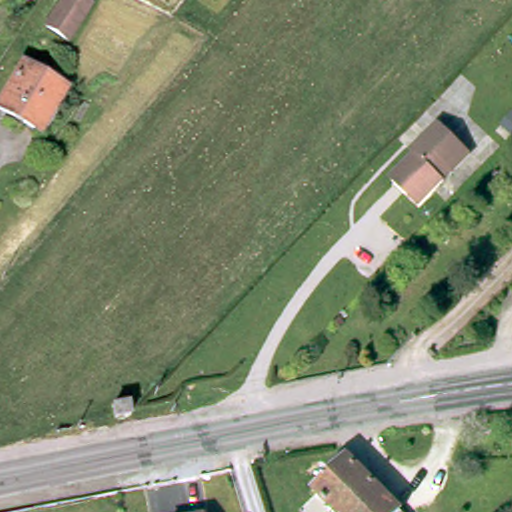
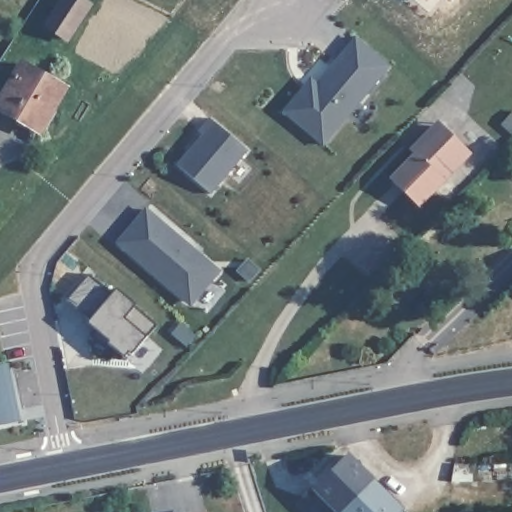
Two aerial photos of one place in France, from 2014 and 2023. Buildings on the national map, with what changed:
unchanged [(70,44),(47,32),(63,0),(76,0),(89,7),(70,44)]
new [(423,0),(429,0),(427,3),(423,0)]
new [(317,83),(354,36),(391,66),(325,144),(282,112),(310,77),(317,83)]
unchanged [(67,92),(40,133),(0,107),(0,104),(26,65),(67,92)]
new [(186,148),(209,118),(249,150),(211,194),(176,167),(189,150),(186,148)]
unchanged [(415,157),(412,154),(439,127),(442,130),(470,157),(420,209),(392,182),(415,157)]
new [(221,271),(190,306),(116,242),(146,206),(221,271)]
new [(112,294),(116,290),(135,305),(157,325),(147,337),(132,355),(128,351),(124,355),(107,342),(108,340),(88,321),(67,301),(88,274),(112,294)]
new [(8,364),(20,422),(0,426),(0,366),(8,364)]
unchanged [(308,487),(339,456),(343,453),(370,480),(339,512),(335,512),(308,487)]
unchanged [(370,480),(402,512),(339,512),(370,480)]

